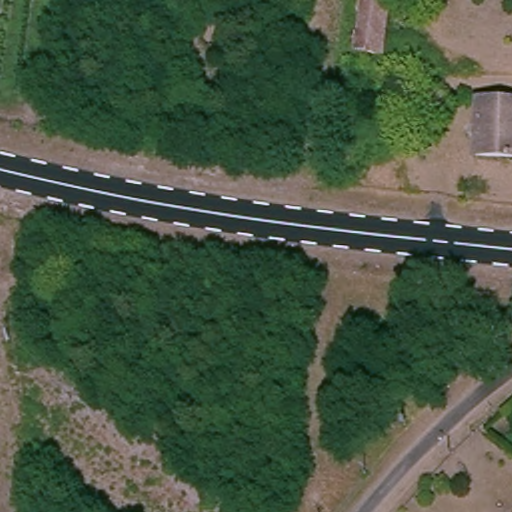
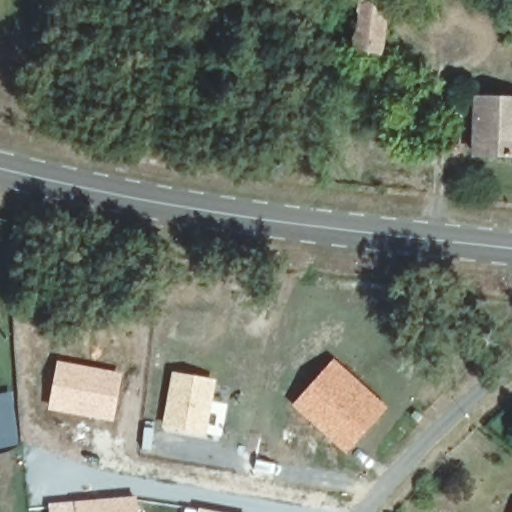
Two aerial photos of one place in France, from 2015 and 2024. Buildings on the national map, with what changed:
unchanged [(350,55),(355,5),(355,0),(382,0),(381,8),(375,57),(350,55)]
unchanged [(474,94),(512,92),(512,148),(476,150),(474,94)]
new [(333,358),(388,406),(346,454),(291,405),(333,358)]
new [(56,360),(122,373),(113,422),(46,410),(56,360)]
new [(171,371),(216,379),(212,400),(227,403),(220,440),(161,428),(171,371)]
new [(19,444),(0,449),(0,394),(10,392),(19,444)]
new [(137,512),(48,512),(47,503),(136,495),(137,512)]
new [(218,512),(183,512),(184,506),(218,512)]

